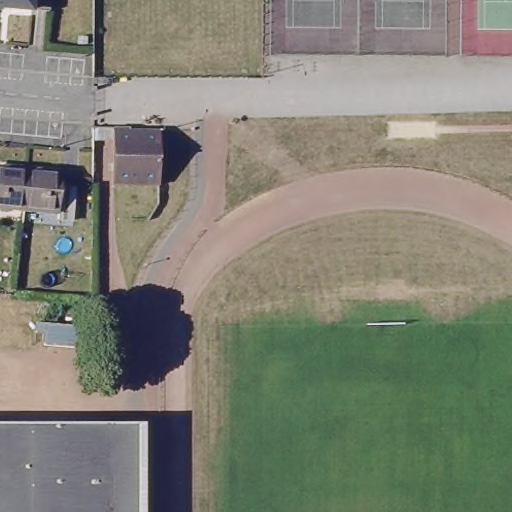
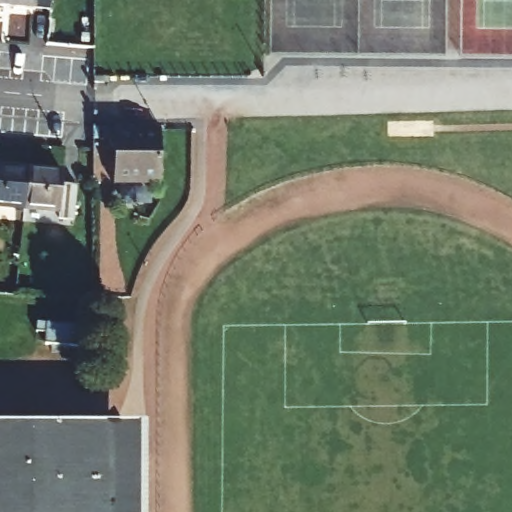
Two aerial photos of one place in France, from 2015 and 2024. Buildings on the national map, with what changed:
unchanged [(34,0),(55,0),(55,1),(34,0)]
unchanged [(134,129),(134,137),(162,136),(163,175),(116,175),(115,130),(134,129)]
unchanged [(25,206),(0,204),(0,164),(29,166),(25,206)]
unchanged [(29,166),(65,169),(65,181),(77,182),(75,217),(62,216),(62,210),(25,206),(29,166)]
unchanged [(87,321),(86,342),(49,340),(49,318),(87,321)]
unchanged [(0,418),(89,417),(89,419),(89,427),(89,431),(89,512),(0,512),(0,418)]
unchanged [(89,427),(89,419),(89,417),(142,417),(142,450),(142,456),(142,512),(89,512),(89,431),(89,427)]

